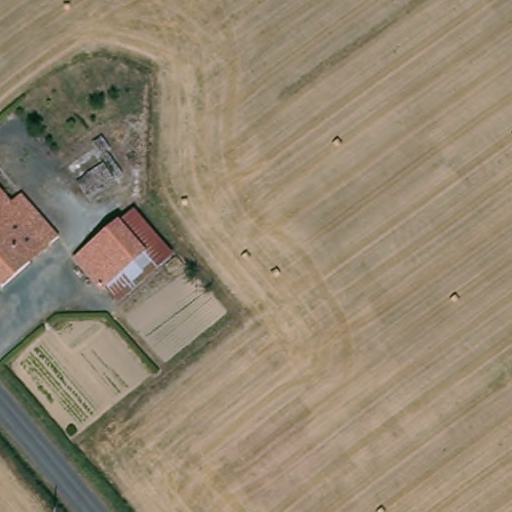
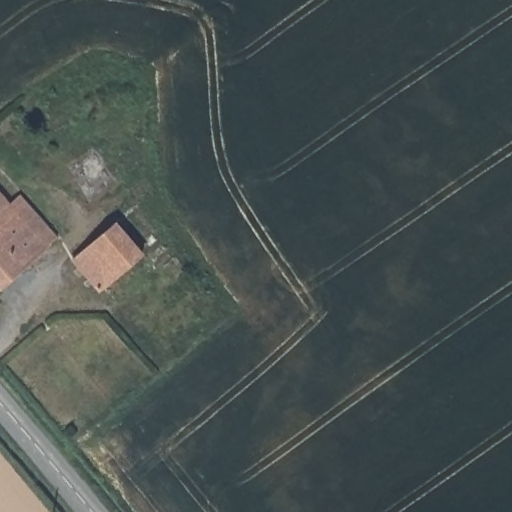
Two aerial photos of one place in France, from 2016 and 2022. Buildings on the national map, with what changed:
unchanged [(59,232),(3,282),(0,279),(0,189),(8,198),(21,187),(59,232)]
unchanged [(134,224),(135,226),(159,255),(151,261),(119,289),(116,291),(113,287),(90,261),(134,224)]

